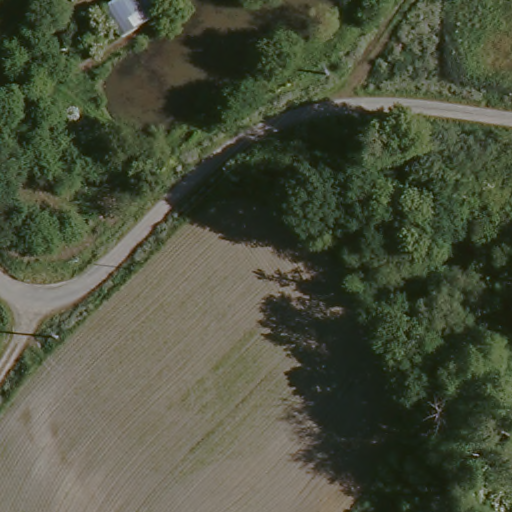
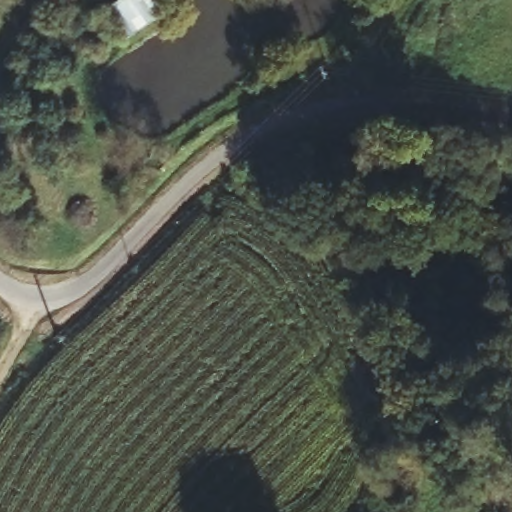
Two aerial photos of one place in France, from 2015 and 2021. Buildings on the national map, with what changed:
unchanged [(172,9),(144,28),(132,33),(112,1),(114,0),(166,0),(172,9)]

